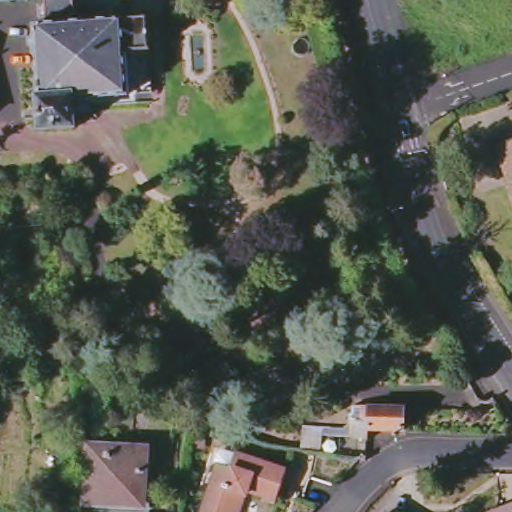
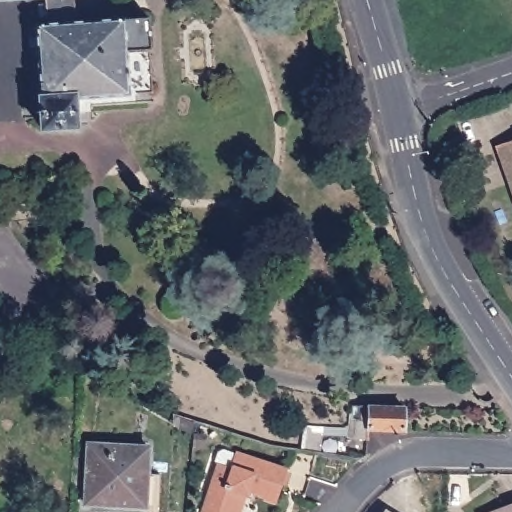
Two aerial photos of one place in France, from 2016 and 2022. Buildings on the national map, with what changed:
unchanged [(0,1),(0,0),(19,0),(0,1)]
unchanged [(75,15),(82,14),(82,22),(47,24),(45,0),(74,0),(75,15)]
unchanged [(47,24),(82,22),(148,18),(152,92),(74,98),(76,125),(44,128),(36,25),(47,24)]
unchanged [(510,163),(503,165),(497,146),(512,141),(512,169),(510,163)]
unchanged [(510,181),(512,180),(512,189),(510,181)]
unchanged [(0,319),(0,301),(17,309),(9,323),(0,319)]
unchanged [(305,452),(306,424),(344,425),(346,424),(346,417),(348,418),(349,411),(352,411),(353,404),(355,404),(405,407),(403,431),(370,429),(368,436),(356,436),(355,433),(322,438),(321,454),(305,452)]
unchanged [(192,431),(175,423),(182,416),(197,422),(192,431)]
unchanged [(83,503),(87,443),(148,446),(145,506),(83,503)]
unchanged [(220,459),(215,457),(218,448),(225,444),(236,448),(236,449),(237,449),(288,469),(295,472),(289,486),(282,484),(277,499),(249,489),(247,493),(240,512),(201,512),(202,509),(220,459)]
unchanged [(502,512),(512,509),(512,512),(502,512)]

